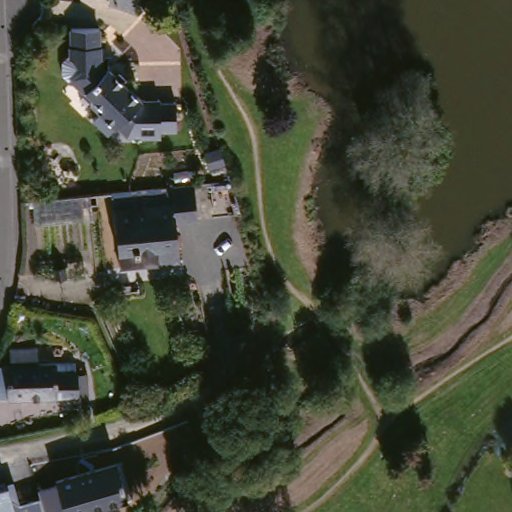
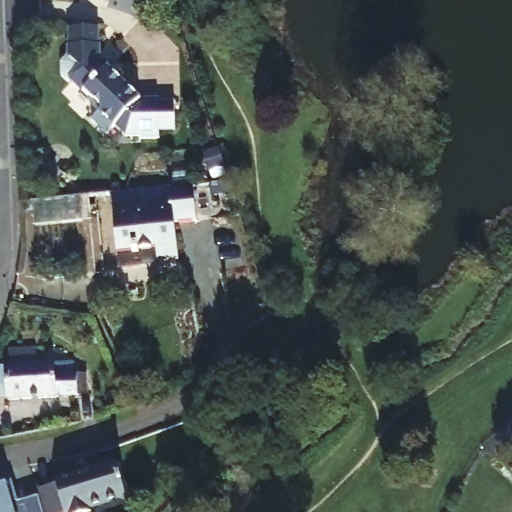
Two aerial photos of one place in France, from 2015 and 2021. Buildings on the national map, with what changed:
unchanged [(107,51),(100,61),(128,90),(136,84),(149,99),(166,99),(165,102),(180,102),(180,132),(167,132),(167,140),(129,140),(107,112),(110,110),(94,95),(90,99),(71,82),(67,70),(75,63),(73,27),(106,27),(107,51)]
unchanged [(177,202),(176,186),(204,182),(209,216),(180,221),(185,265),(167,267),(165,252),(127,255),(122,209),(177,202)]
unchanged [(82,375),(92,374),(92,396),(5,402),(9,381),(12,363),(25,364),(25,348),(55,347),(55,362),(81,362),(82,375)]
unchanged [(127,462),(134,498),(97,506),(97,510),(85,512),(74,512),(74,510),(72,511),(71,507),(52,511),(49,493),(46,481),(65,477),(65,474),(127,462)]
unchanged [(7,483),(14,481),(21,503),(49,493),(52,511),(71,507),(72,511),(74,510),(74,512),(0,512),(0,485),(7,483)]

